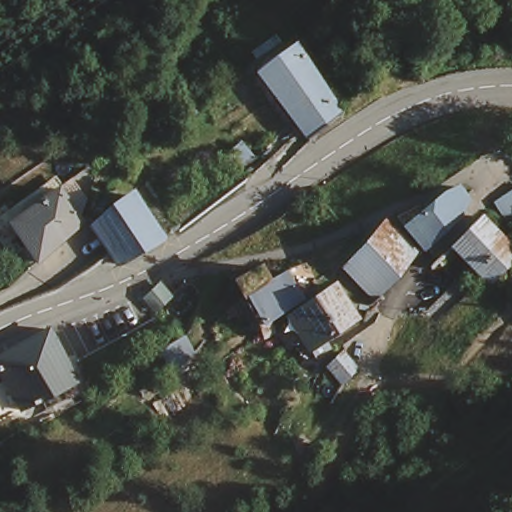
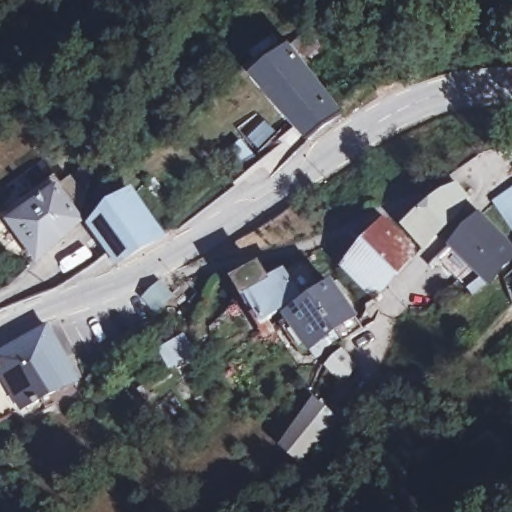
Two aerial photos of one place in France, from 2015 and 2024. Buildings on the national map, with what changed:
unchanged [(324,50),(303,65),(335,110),(298,134),(252,67),(309,27),(324,50)]
unchanged [(261,150),(243,162),(230,144),(249,132),(261,150)]
unchanged [(464,196),(455,205),(454,212),(425,241),(403,219),(421,201),(425,202),(456,180),(464,196)]
unchanged [(82,223),(39,260),(3,215),(49,181),(82,223)]
unchanged [(499,199),(512,188),(512,217),(499,199)]
unchanged [(159,234),(116,260),(108,249),(91,221),(131,192),(159,234)]
unchanged [(512,242),(512,254),(490,278),(453,241),(484,212),(508,231),(512,242)]
unchanged [(361,236),(383,214),(414,245),(393,268),(361,236)]
unchanged [(393,268),(371,292),(338,259),(361,236),(393,268)]
unchanged [(182,273),(168,287),(158,275),(172,262),(182,273)]
unchanged [(269,282),(286,278),(296,296),(256,323),(230,281),(256,262),(269,282)]
unchanged [(322,340),(308,350),(284,313),(306,298),(328,284),(350,315),(328,330),(320,335),(322,340)]
unchanged [(74,378),(16,406),(0,374),(0,350),(47,326),(74,378)]
unchanged [(203,351),(182,368),(170,354),(176,348),(190,336),(203,351)]
unchanged [(355,359),(338,372),(327,359),(343,345),(355,359)]
new [(301,464),(290,455),(295,448),(284,438),(316,401),(339,420),(301,464)]

